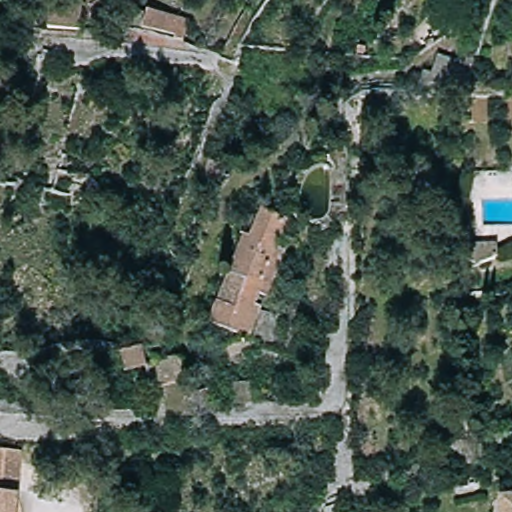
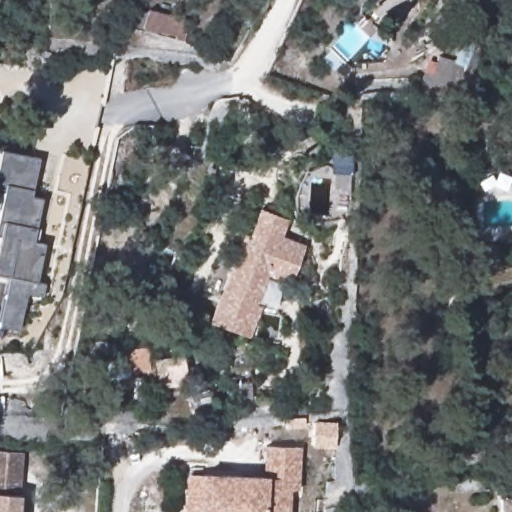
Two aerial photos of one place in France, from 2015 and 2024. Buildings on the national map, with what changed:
unchanged [(87,31),(45,29),(49,0),(82,0),(89,1),(87,31)]
unchanged [(178,42),(139,30),(144,13),(184,25),(178,42)]
unchanged [(428,86),(435,57),(455,62),(447,85),(428,86)]
new [(31,197),(42,200),(34,243),(45,245),(38,283),(46,285),(43,298),(26,295),(20,332),(0,328),(0,326),(9,285),(1,283),(0,291),(0,237),(0,210),(4,193),(0,192),(0,154),(38,160),(31,197)]
new [(331,154),(350,154),(349,175),(331,176),(326,217),(308,216),(313,172),(328,173),(331,154)]
unchanged [(234,237),(242,240),(251,212),(279,223),(270,250),(278,254),(262,298),(255,297),(251,307),(256,311),(255,313),(277,316),(274,342),(246,339),(204,323),(234,237)]
unchanged [(499,245),(499,257),(479,265),(467,261),(467,244),(499,245)]
unchanged [(180,360),(178,384),(153,385),(153,359),(180,360)]
new [(338,425),(339,446),(318,447),(316,426),(338,425)]
new [(186,475),(199,475),(199,472),(263,476),(265,446),(301,447),(297,492),(291,492),(289,512),(184,512),(186,475)]
unchanged [(0,452),(22,453),(17,512),(0,512),(0,452)]
unchanged [(492,499),(512,498),(512,512),(493,512),(492,499)]

